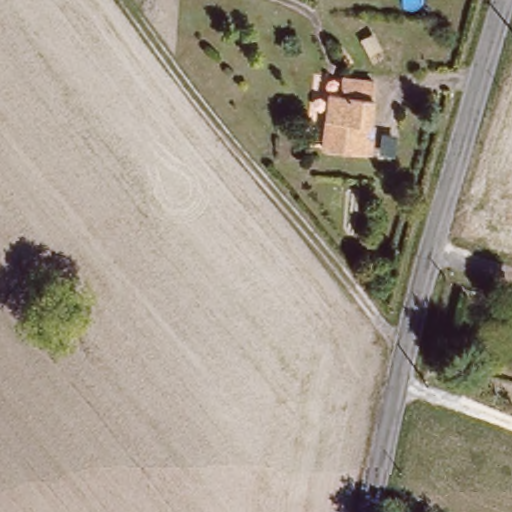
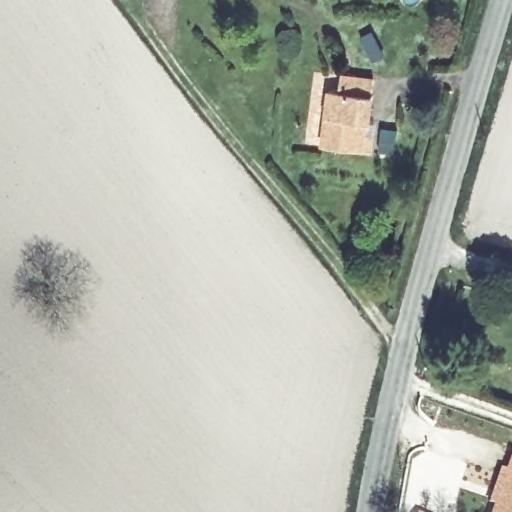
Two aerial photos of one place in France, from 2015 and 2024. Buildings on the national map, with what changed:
unchanged [(377,140),(373,151),(327,144),(333,88),(342,88),(348,76),(382,83),(377,124),(372,125),(370,138),(377,140)]
new [(512,453),(512,512),(490,512),(492,506),(487,505),(499,468),(505,469),(510,452),(512,453)]

